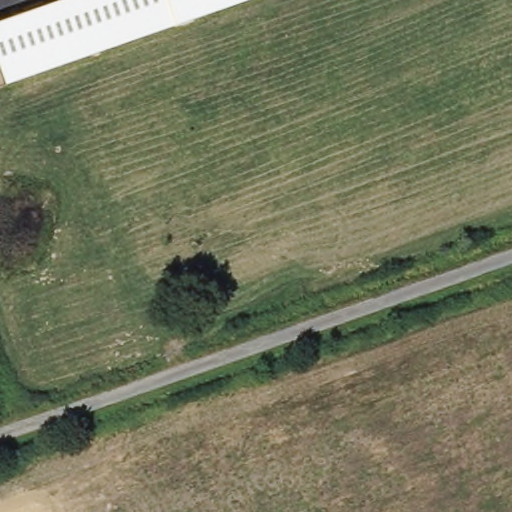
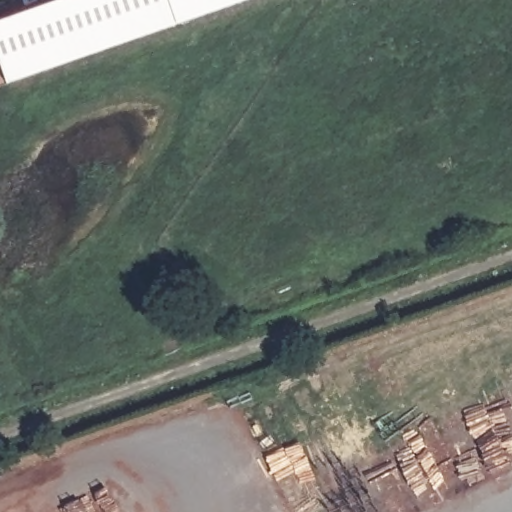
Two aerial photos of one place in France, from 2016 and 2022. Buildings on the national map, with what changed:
unchanged [(0,55),(0,24),(69,0),(249,0),(9,83),(0,55)]

